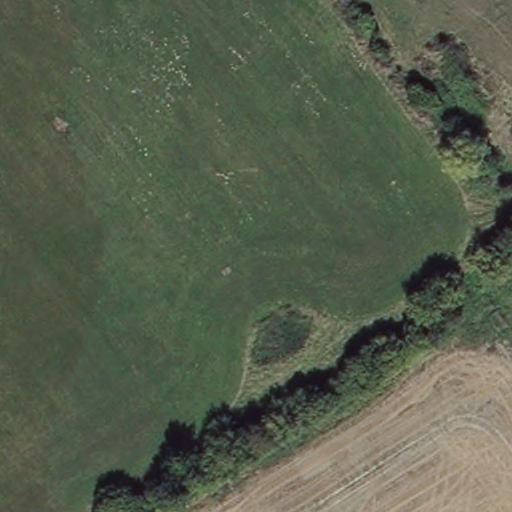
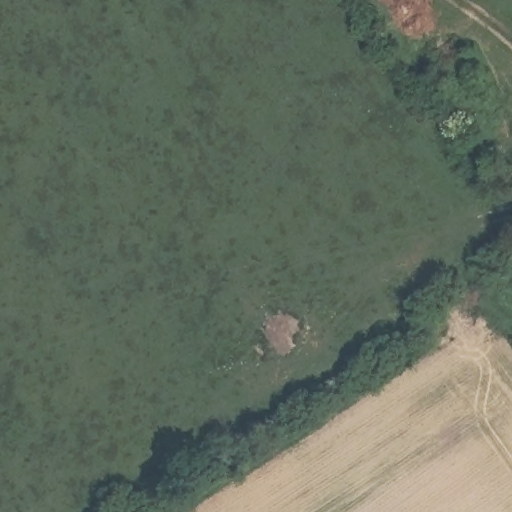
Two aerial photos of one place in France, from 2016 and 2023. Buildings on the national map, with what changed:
[]

